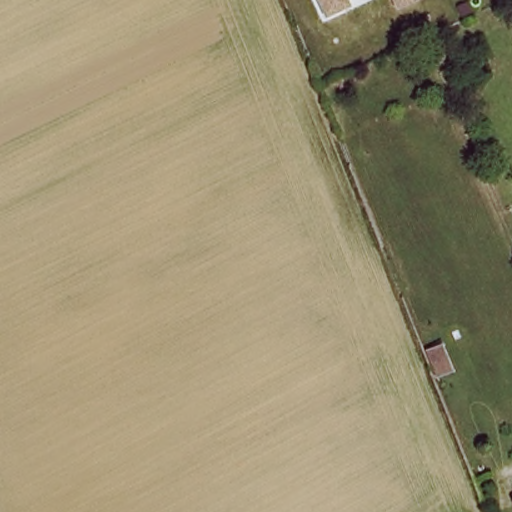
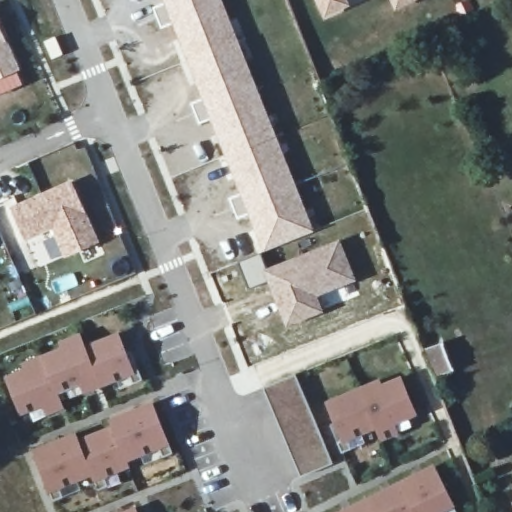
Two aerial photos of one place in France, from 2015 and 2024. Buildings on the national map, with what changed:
new [(264,254),(249,218),(237,224),(229,200),(240,196),(211,123),(198,128),(189,106),(202,101),(172,26),(159,31),(152,9),(164,4),(162,0),(221,0),(315,234),(264,254)]
unchanged [(329,20),(319,0),(341,0),(347,13),(329,20)]
unchanged [(392,14),(386,0),(416,0),(418,3),(392,14)]
new [(0,81),(0,30),(20,74),(0,81)]
new [(73,182),(99,245),(65,259),(53,230),(25,243),(9,210),(73,182)]
new [(260,256),(265,270),(341,242),(355,284),(317,299),(323,314),(286,330),(266,283),(248,290),(237,264),(260,256)]
new [(23,372),(21,365),(60,350),(58,344),(81,336),(85,347),(120,334),(135,376),(82,398),(78,389),(60,397),(65,410),(47,418),(43,410),(20,418),(4,379),(23,372)]
new [(296,377),(333,466),(301,481),(262,390),(296,377)]
new [(379,382),(382,387),(402,379),(417,418),(376,437),(375,432),(342,447),(325,404),(379,382)]
new [(77,435),(79,442),(111,430),(108,423),(153,405),(169,448),(128,465),(130,470),(93,485),(92,479),(49,498),(30,453),(77,435)]
new [(434,466),(455,510),(450,512),(342,512),(434,466)]
new [(136,510),(136,512),(130,512),(136,510)]

